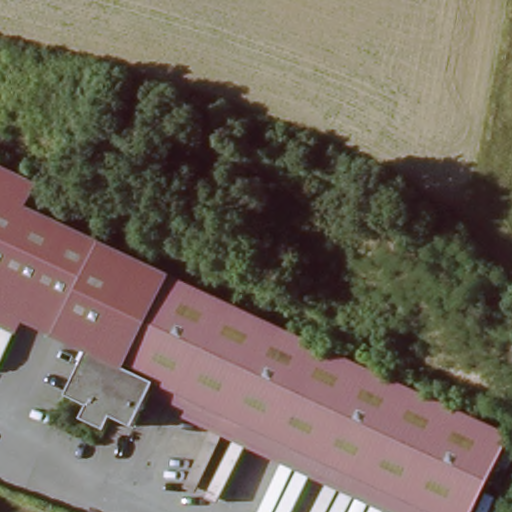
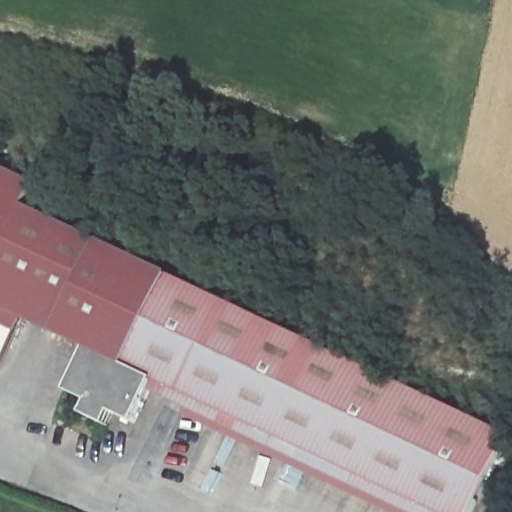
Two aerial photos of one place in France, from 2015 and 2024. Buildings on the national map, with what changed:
unchanged [(22,333),(0,322),(0,166),(37,183),(25,208),(164,271),(163,274),(120,361),(83,347),(27,322),(22,333)]
unchanged [(120,361),(163,274),(504,434),(463,512),(428,512),(151,383),(120,361)]
unchanged [(134,424),(115,413),(104,426),(80,414),(84,403),(64,392),(83,347),(120,361),(151,383),(134,424)]

